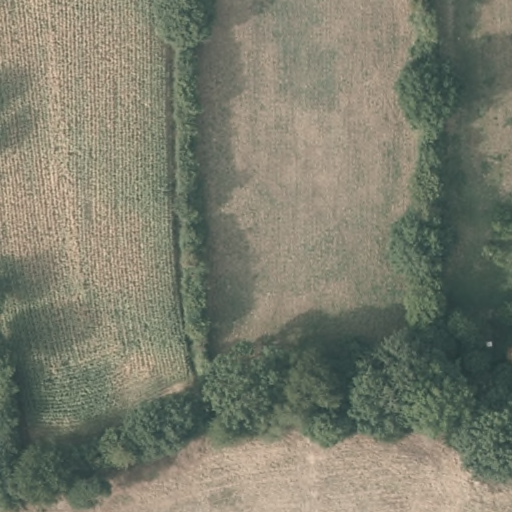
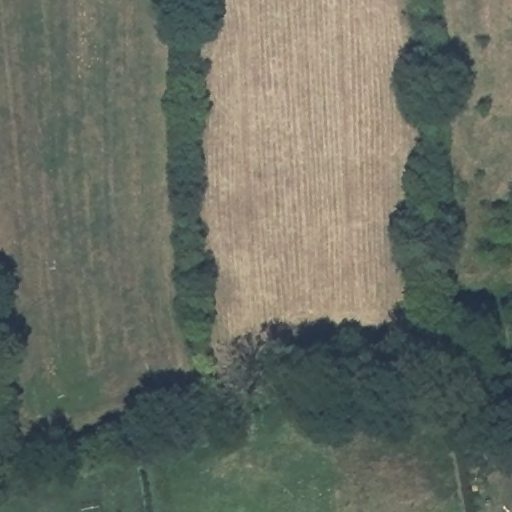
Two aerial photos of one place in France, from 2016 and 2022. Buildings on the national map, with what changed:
[]

